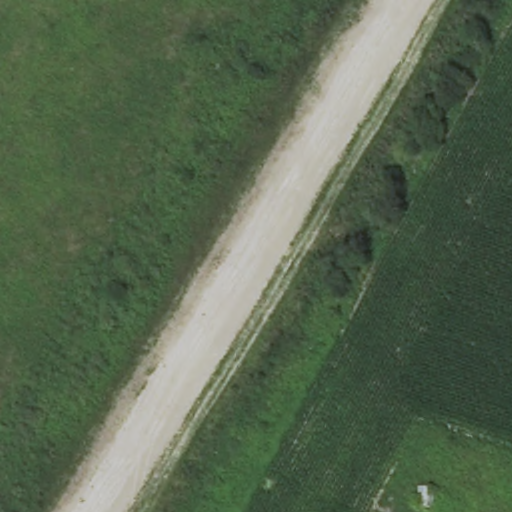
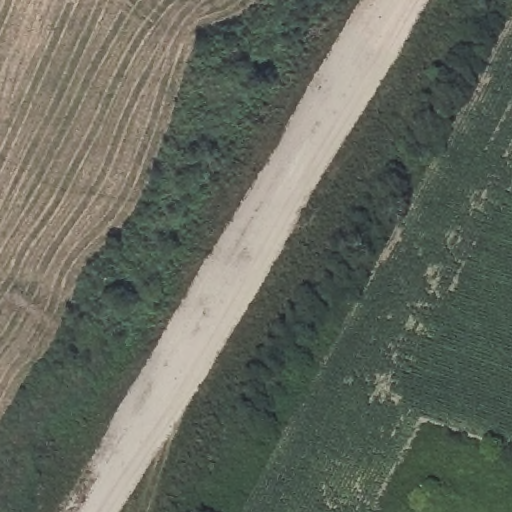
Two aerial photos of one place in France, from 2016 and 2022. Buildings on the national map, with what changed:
unchanged [(444,492),(438,511),(415,508),(418,490),(444,492)]

